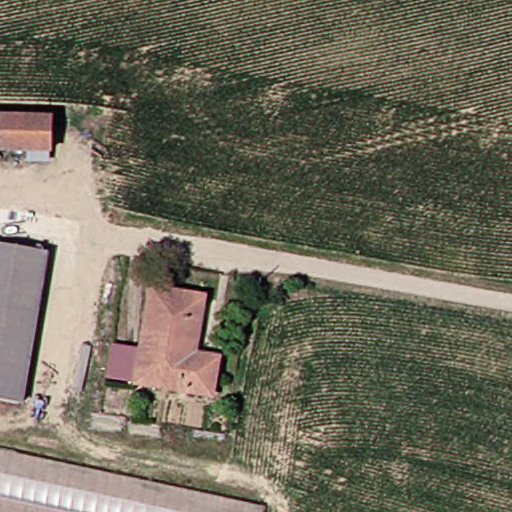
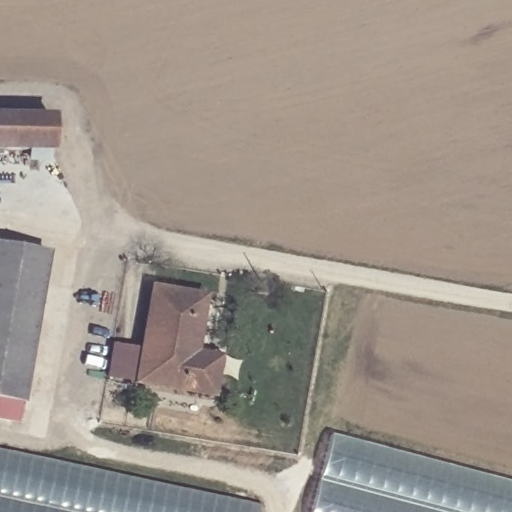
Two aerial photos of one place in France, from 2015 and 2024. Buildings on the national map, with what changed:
unchanged [(0,150),(0,118),(49,120),(49,153),(0,150)]
unchanged [(38,244),(30,397),(0,395),(0,243),(38,244)]
unchanged [(217,377),(215,392),(139,378),(110,373),(116,342),(144,347),(152,289),(206,298),(196,358),(220,361),(217,377)]
new [(21,426),(0,422),(0,396),(30,397),(21,426)]
new [(330,435),(512,483),(512,512),(310,512),(330,435)]
unchanged [(265,502),(263,512),(0,512),(0,446),(265,502)]

